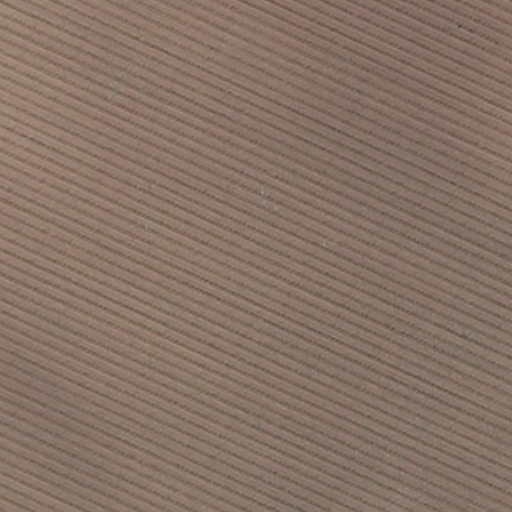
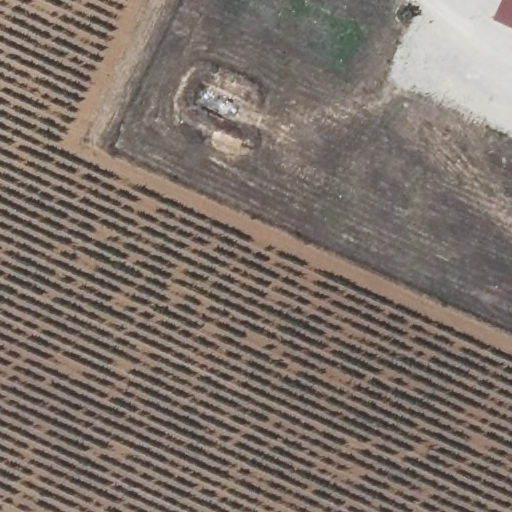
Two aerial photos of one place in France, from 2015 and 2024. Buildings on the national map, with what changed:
new [(497,0),(512,0),(512,29),(489,18),(497,0)]

